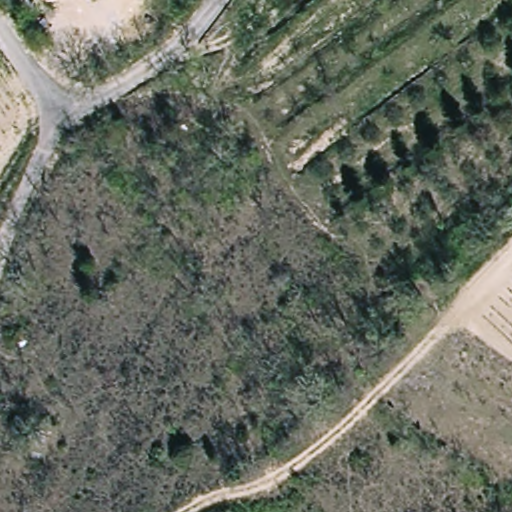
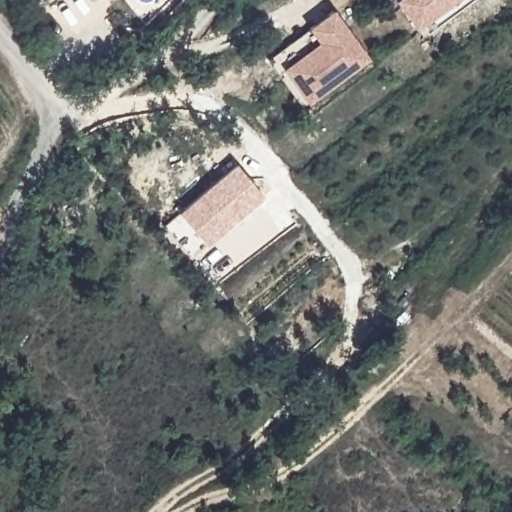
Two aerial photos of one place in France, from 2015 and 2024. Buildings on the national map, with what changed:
unchanged [(49,0),(51,0),(50,1),(49,0)]
new [(395,2),(396,2),(395,0),(461,0),(417,32),(395,2)]
new [(370,60),(309,106),(306,102),(302,108),(267,61),(309,28),(333,10),(370,60)]
new [(265,197),(208,246),(178,212),(236,163),(265,197)]

